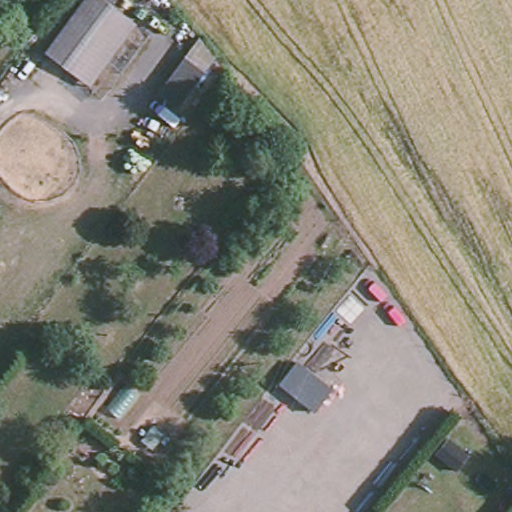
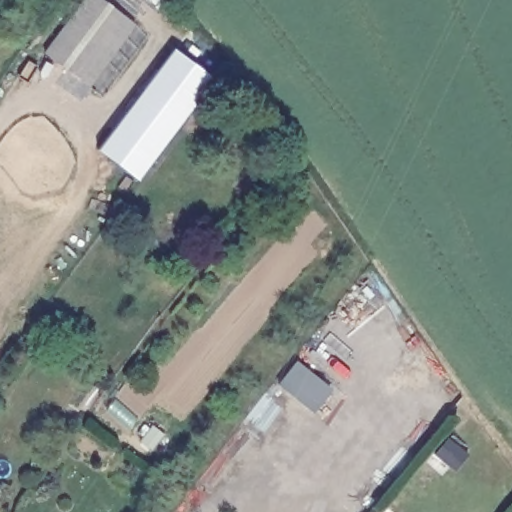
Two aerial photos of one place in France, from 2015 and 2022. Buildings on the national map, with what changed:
unchanged [(84,81),(77,76),(47,55),(88,0),(103,0),(120,13),(130,20),(137,25),(91,87),(84,81)]
new [(213,79),(137,181),(97,150),(173,50),(213,79)]
demolished [(177,107),(160,94),(185,61),(202,74),(177,107)]
new [(332,390),(314,413),(277,384),(296,361),(332,390)]

